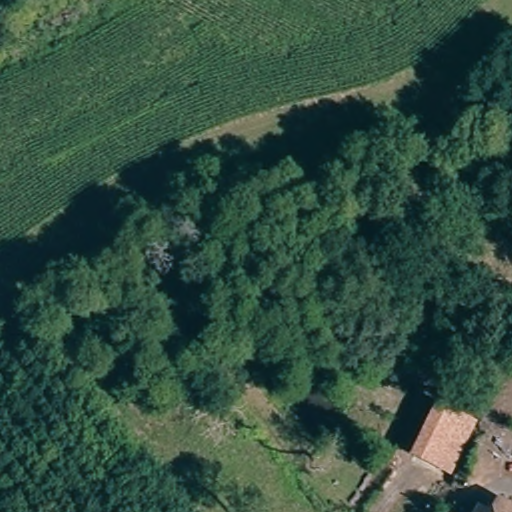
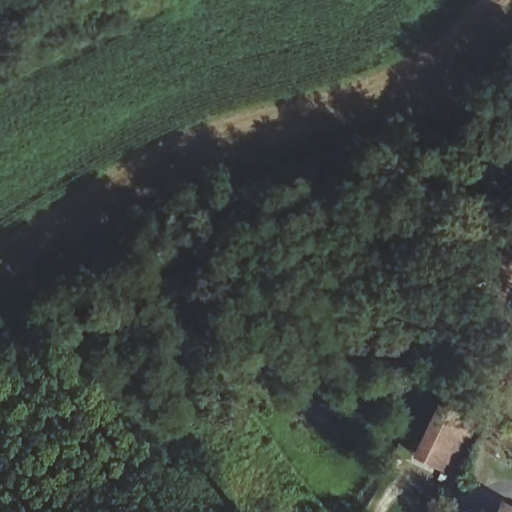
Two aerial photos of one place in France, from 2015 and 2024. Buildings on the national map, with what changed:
unchanged [(469,440),(447,480),(410,464),(433,420),(469,440)]
unchanged [(507,512),(503,512),(504,510),(507,512)]

